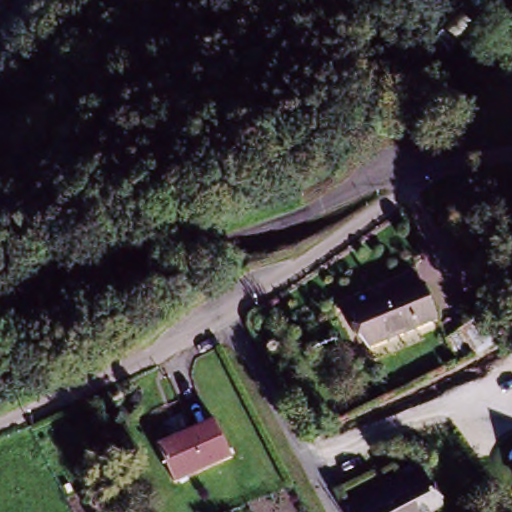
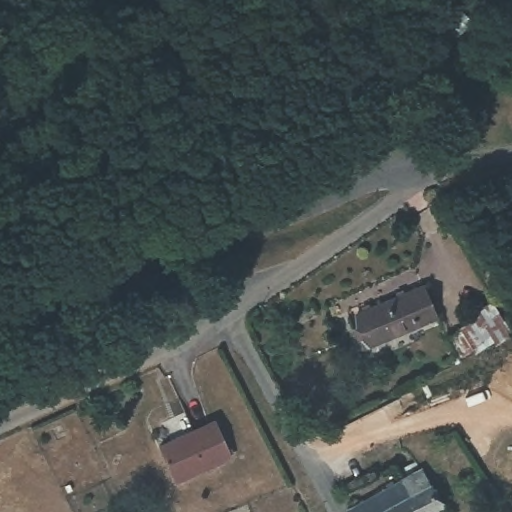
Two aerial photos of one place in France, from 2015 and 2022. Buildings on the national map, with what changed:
unchanged [(427,292),(437,325),(374,352),(363,319),(427,292)]
unchanged [(463,344),(478,337),(499,327),(497,322),(512,316),(512,317),(512,353),(489,362),(474,369),(463,344)]
unchanged [(176,482),(159,448),(215,423),(231,457),(176,482)]
unchanged [(422,480),(428,491),(438,512),(361,512),(407,488),(422,480)]

